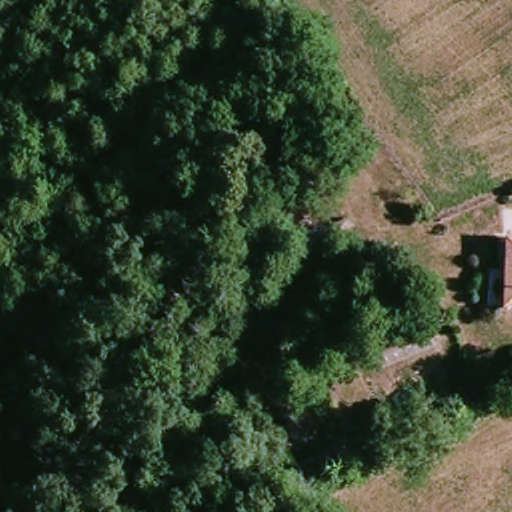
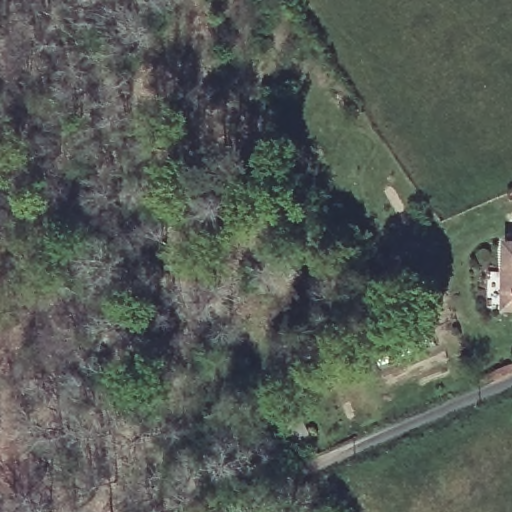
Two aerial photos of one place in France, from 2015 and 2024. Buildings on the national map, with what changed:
unchanged [(510,249),(512,249),(512,313),(506,313),(510,249)]

